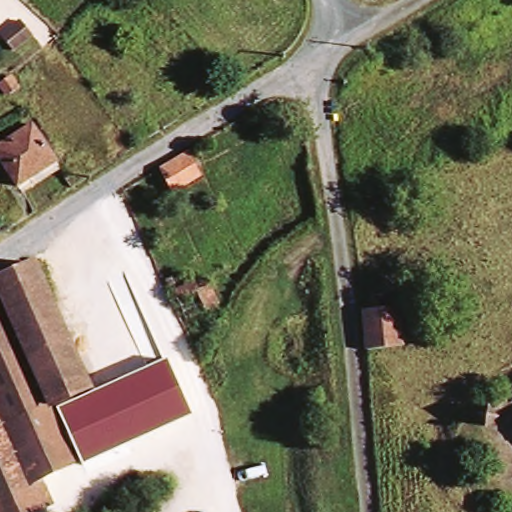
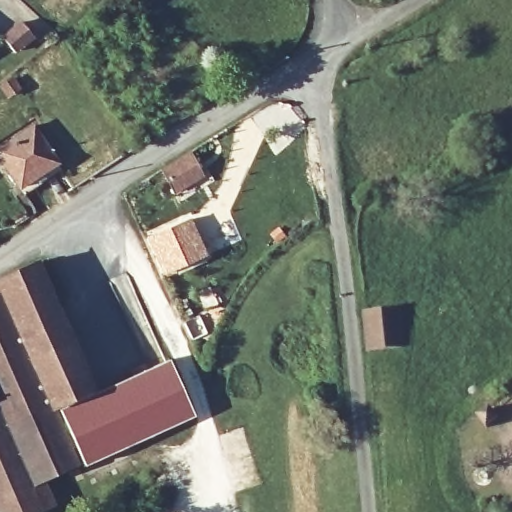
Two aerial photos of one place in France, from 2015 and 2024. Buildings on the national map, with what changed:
unchanged [(8,52),(0,43),(0,37),(15,24),(26,36),(8,52)]
unchanged [(1,84),(11,77),(18,88),(8,95),(1,84)]
unchanged [(18,188),(0,161),(0,148),(33,126),(56,162),(18,188)]
unchanged [(164,169),(191,155),(201,178),(174,192),(164,169)]
new [(190,217),(208,255),(162,276),(144,237),(190,217)]
unchanged [(32,262),(88,389),(77,393),(102,447),(74,460),(75,463),(40,479),(51,503),(32,512),(0,512),(0,276),(32,262)]
unchanged [(201,290),(178,299),(176,290),(196,280),(201,290)]
unchanged [(366,351),(363,310),(398,309),(402,348),(366,351)]
unchanged [(102,447),(80,401),(169,360),(193,416),(83,465),(79,457),(102,447)]

